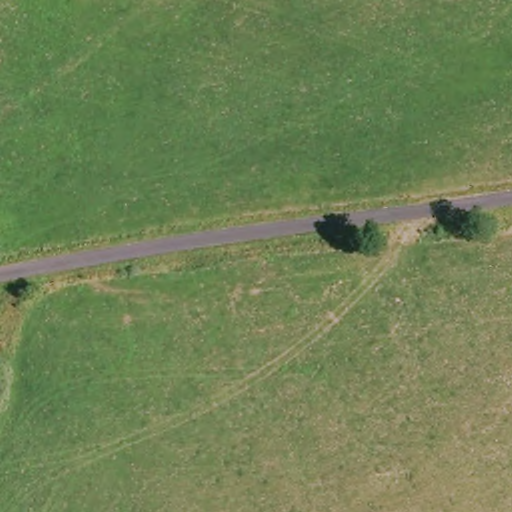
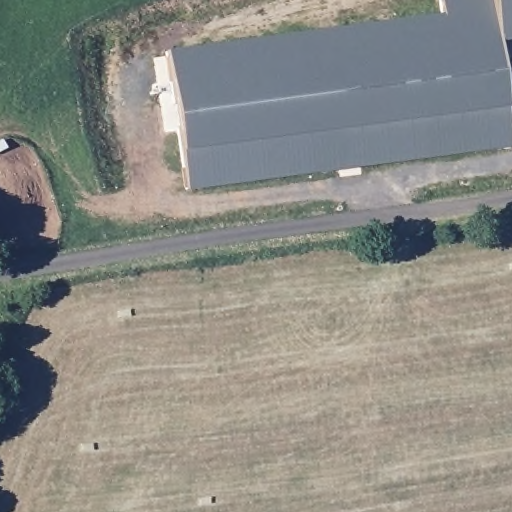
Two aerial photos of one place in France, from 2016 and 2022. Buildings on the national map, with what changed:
new [(437,0),(512,0),(512,44),(495,46),(509,148),(187,189),(168,51),(441,16),(437,0)]

